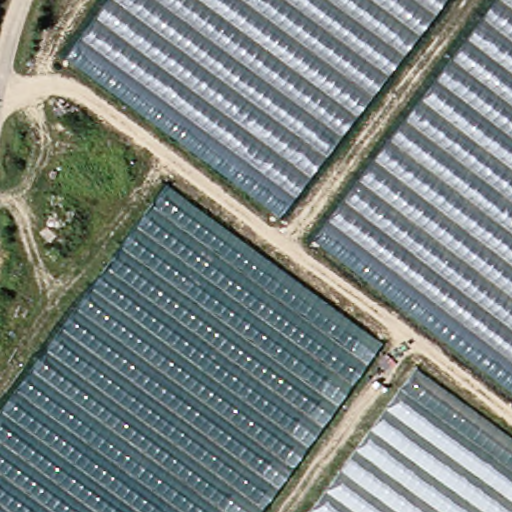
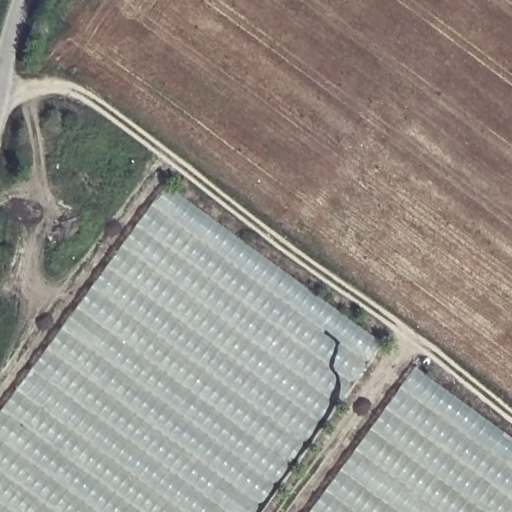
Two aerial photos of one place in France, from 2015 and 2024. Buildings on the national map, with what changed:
demolished [(59,51),(98,0),(432,0),(275,209),(59,51)]
demolished [(488,0),(512,0),(512,392),(309,236),(488,0)]
unchanged [(366,347),(247,512),(0,512),(0,398),(152,189),(366,347)]
unchanged [(512,448),(512,512),(300,512),(403,370),(512,448)]

